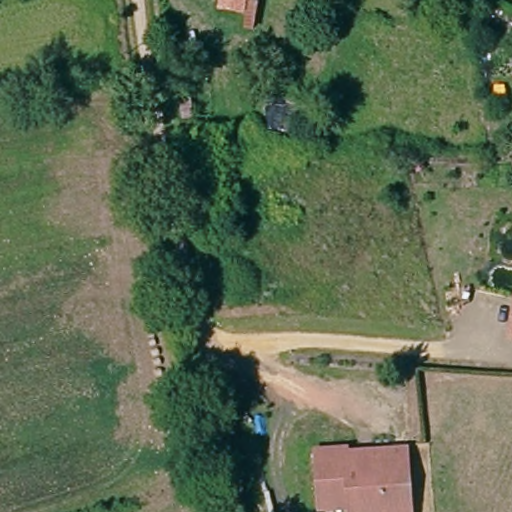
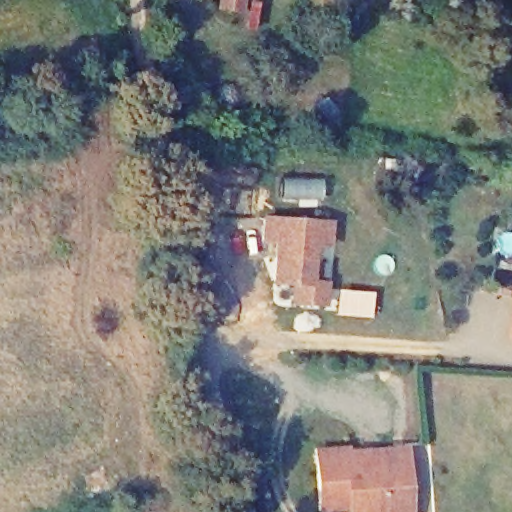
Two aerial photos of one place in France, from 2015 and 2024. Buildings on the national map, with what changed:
unchanged [(221,7),(221,0),(243,0),(242,9),(221,7)]
new [(315,245),(313,282),(328,283),(328,307),(290,307),(291,285),(272,285),(273,244),(261,244),(262,217),(333,221),(332,248),(315,245)]
unchanged [(512,320),(512,334),(508,334),(512,320)]
unchanged [(317,486),(315,454),(345,451),(345,460),(388,457),(404,455),(408,512),(349,512),(348,510),(325,512),(319,512),(317,486)]

